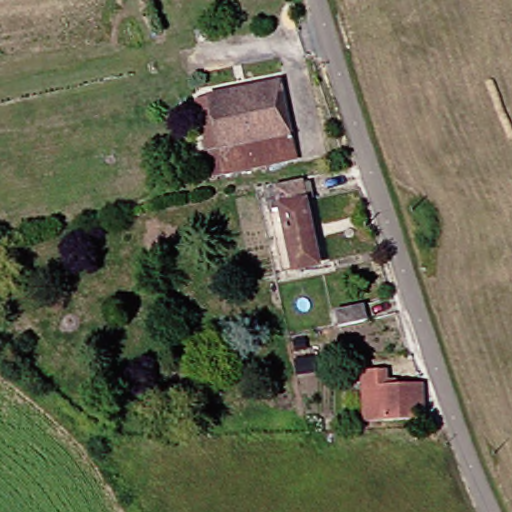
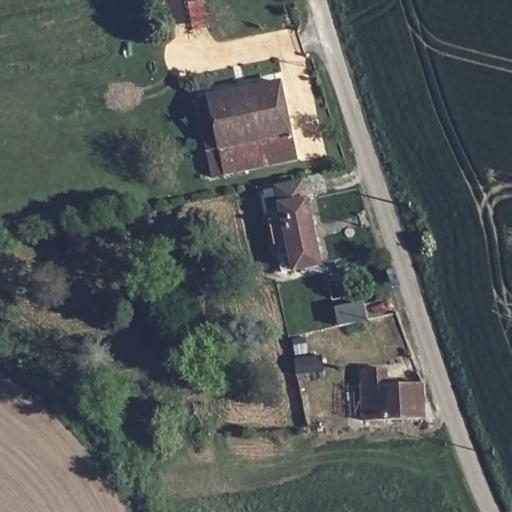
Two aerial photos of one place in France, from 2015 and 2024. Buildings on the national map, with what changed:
unchanged [(302,160),(230,175),(223,147),(203,152),(192,105),(212,100),(285,85),(302,160)]
unchanged [(323,261),(298,267),(286,206),(273,209),(270,191),(307,184),(323,261)]
unchanged [(386,372),(387,388),(432,386),(434,419),(377,423),(374,373),(386,372)]

